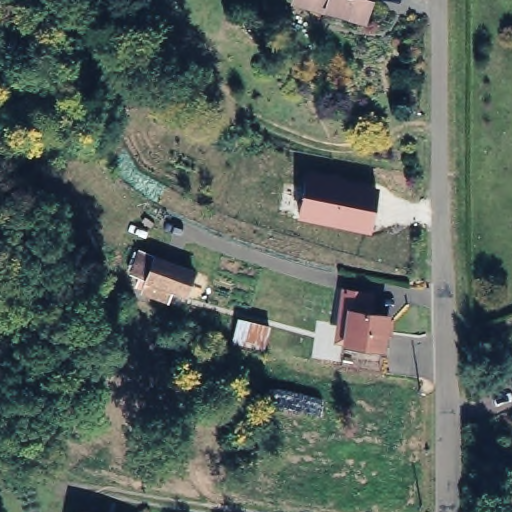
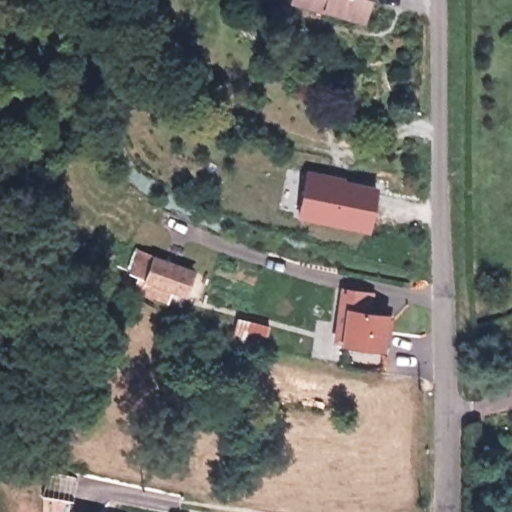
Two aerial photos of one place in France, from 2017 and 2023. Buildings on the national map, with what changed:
unchanged [(307,0),(362,0),(359,10),(307,0)]
unchanged [(307,173),(379,189),(371,233),(297,217),(307,173)]
unchanged [(193,279),(183,303),(148,289),(158,263),(193,279)]
unchanged [(366,283),(366,302),(384,305),(380,339),(341,334),(342,317),(333,315),(338,279),(366,283)]
unchanged [(512,511),(512,512),(508,512),(512,511)]

